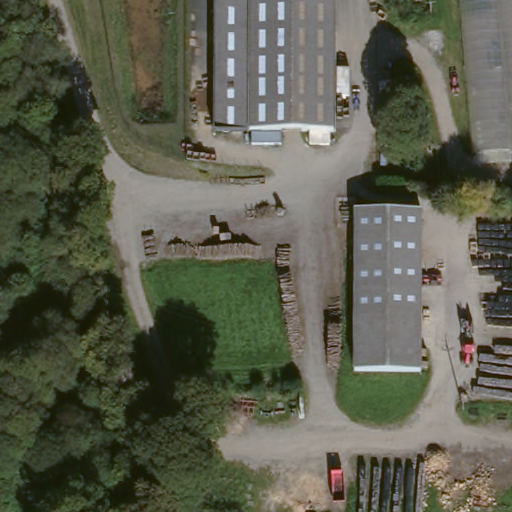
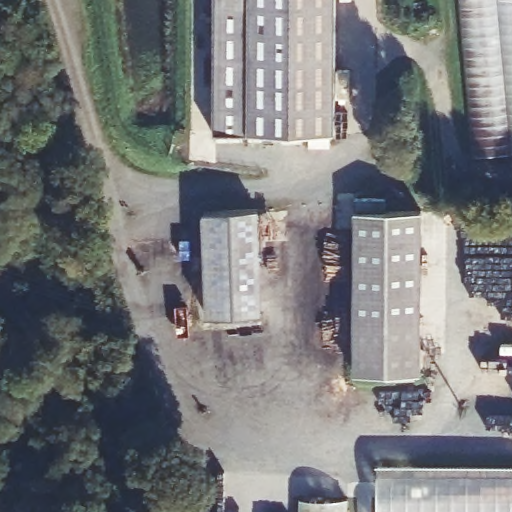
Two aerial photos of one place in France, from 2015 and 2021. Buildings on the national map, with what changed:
unchanged [(331,129),(331,144),(325,144),(324,163),(316,163),(301,162),(301,144),(293,143),(291,143),(211,141),(210,133),(211,0),(332,0),(331,129)]
unchanged [(512,160),(463,163),(449,0),(512,0),(512,160)]
new [(204,211),(259,210),(264,314),(207,313),(204,211)]
unchanged [(417,219),(416,380),(349,380),(349,219),(417,219)]
new [(512,466),(512,512),(379,512),(379,464),(512,466)]
new [(348,512),(301,512),(301,498),(349,498),(348,512)]

